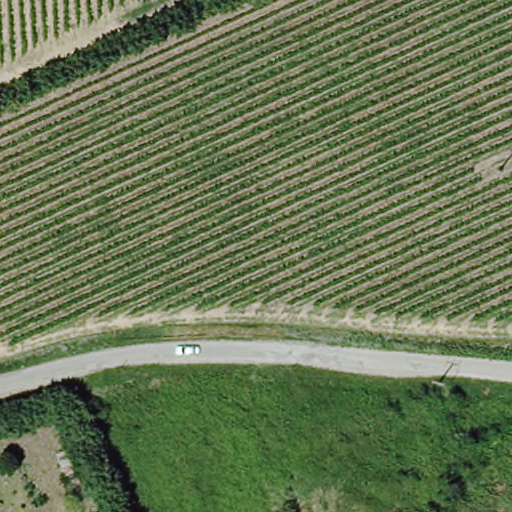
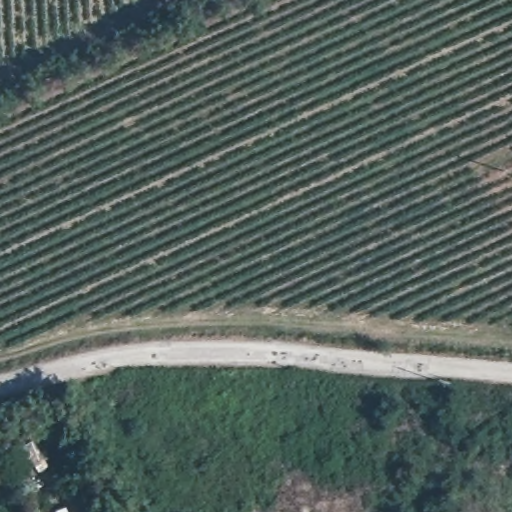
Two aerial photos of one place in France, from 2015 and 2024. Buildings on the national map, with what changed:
unchanged [(52,454),(72,445),(80,472),(62,481),(52,454)]

